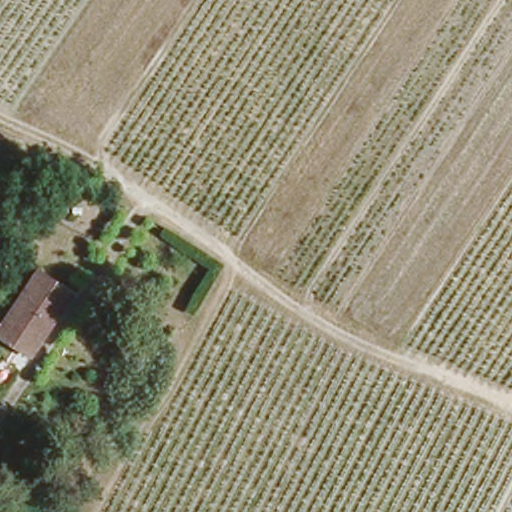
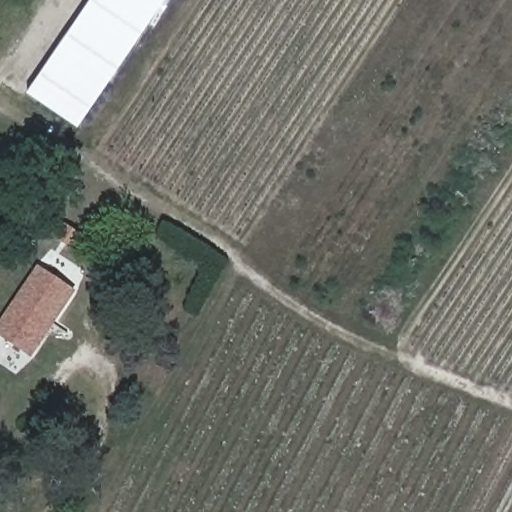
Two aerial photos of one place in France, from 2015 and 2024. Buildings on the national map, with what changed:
new [(27,92),(89,0),(165,0),(77,127),(27,92)]
unchanged [(69,285),(29,352),(0,334),(0,321),(35,263),(69,285)]

